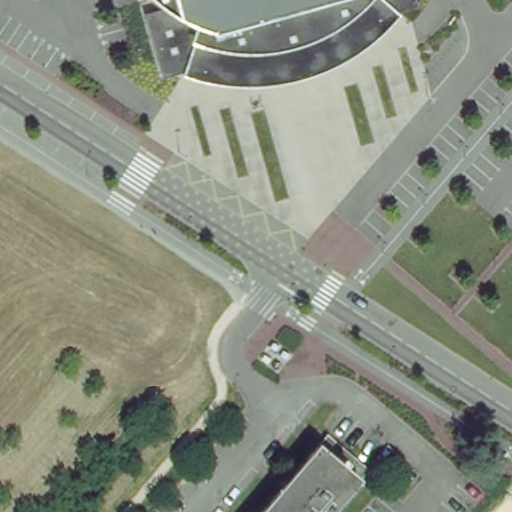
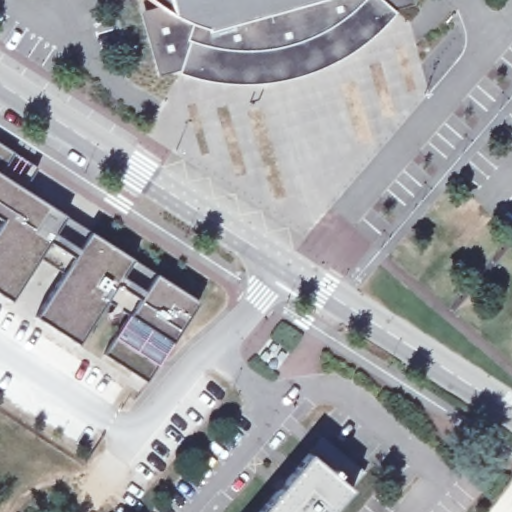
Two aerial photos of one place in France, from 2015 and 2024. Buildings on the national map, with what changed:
unchanged [(387,10),(370,30),(339,52),(302,70),(266,78),(245,79),(218,76),(175,66),(153,71),(138,9),(156,5),(150,0),(405,0),(387,10)]
new [(0,147),(0,145),(1,145),(0,147)]
new [(95,335),(78,325),(100,290),(80,277),(55,316),(18,291),(43,252),(21,239),(0,272),(0,172),(149,270),(95,335)]
new [(21,239),(43,252),(38,259),(17,245),(21,239)]
new [(165,338),(141,379),(110,358),(116,350),(95,335),(145,275),(149,270),(163,278),(191,298),(165,338)]
demolished [(303,331),(319,345),(302,365),(286,350),(303,331)]
unchanged [(353,481),(327,512),(251,512),(291,462),(308,442),(353,481)]

